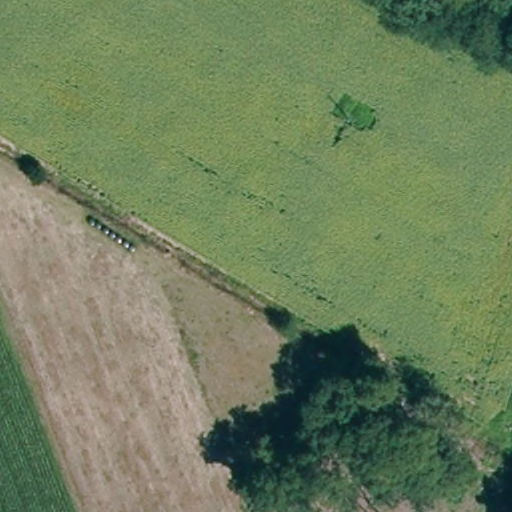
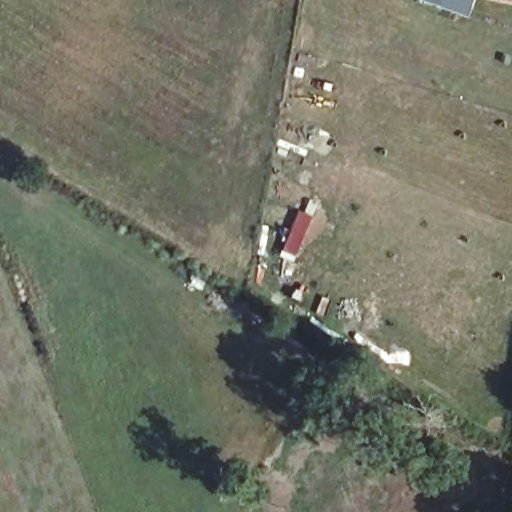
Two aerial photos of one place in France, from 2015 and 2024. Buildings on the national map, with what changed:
new [(421,0),(475,0),(470,19),(421,0)]
new [(505,0),(512,0),(512,1),(505,0)]

